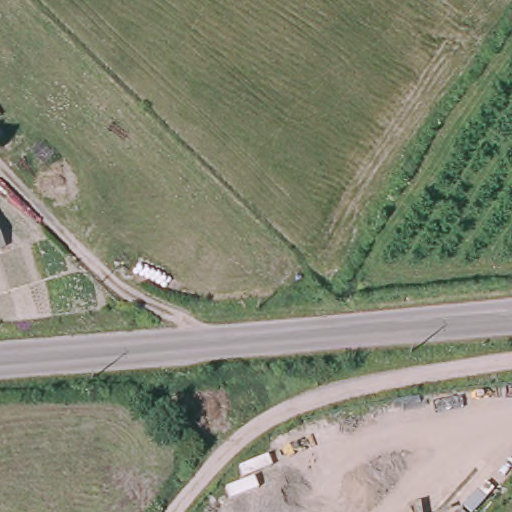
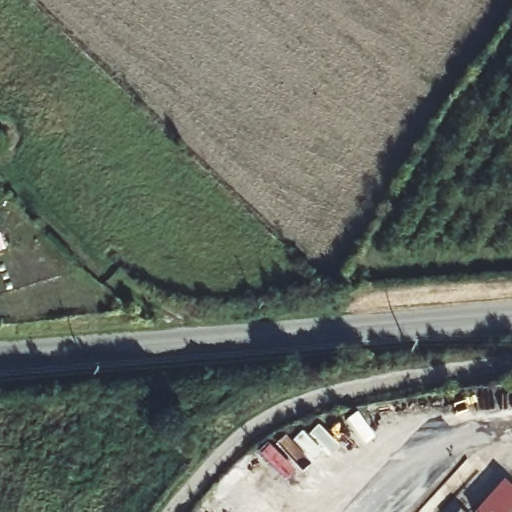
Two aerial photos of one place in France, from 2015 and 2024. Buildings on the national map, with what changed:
demolished [(0,257),(0,238),(7,254),(0,257)]
unchanged [(0,256),(0,252),(2,255),(0,256)]
new [(503,481),(512,489),(512,512),(476,512),(503,481)]

